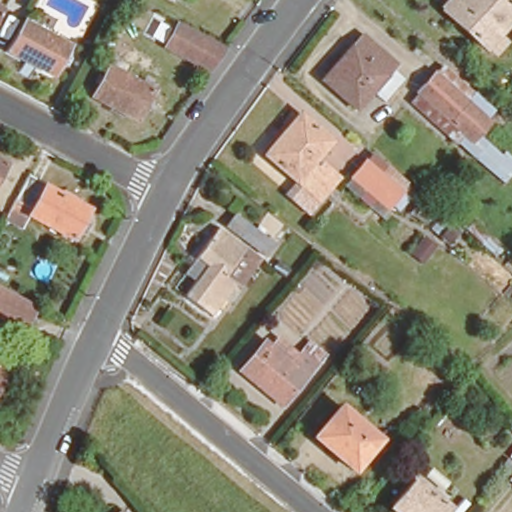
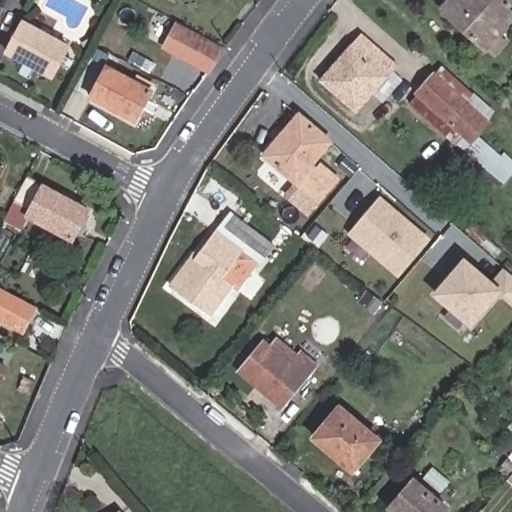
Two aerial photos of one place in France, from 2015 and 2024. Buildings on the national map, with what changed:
unchanged [(491,57),(483,50),(438,11),(448,0),(505,0),(508,3),(503,8),(512,16),(512,18),(496,35),(505,42),(491,57)]
unchanged [(0,11),(7,15),(0,28),(0,11)]
unchanged [(69,45),(52,76),(7,52),(25,21),(69,45)]
unchanged [(209,70),(165,48),(177,23),(225,49),(209,70)]
unchanged [(399,66),(357,112),(322,81),(363,35),(399,66)]
unchanged [(456,143),(410,101),(435,73),(442,65),(474,93),(497,113),(490,120),(492,122),(473,143),(463,135),(456,143)]
unchanged [(152,90),(136,121),(91,97),(107,66),(152,90)]
unchanged [(328,141),(308,165),(313,169),(317,164),(334,179),(315,201),(260,155),(296,113),(328,141)]
unchanged [(0,200),(0,199),(0,160),(16,169),(0,200)]
demolished [(398,191),(383,209),(372,200),(346,178),(361,161),(398,191)]
unchanged [(32,175),(94,208),(77,239),(31,215),(26,225),(11,217),(32,175)]
new [(347,235),(380,196),(430,239),(398,279),(347,235)]
unchanged [(276,244),(267,257),(227,225),(236,213),(276,244)]
new [(465,230),(471,223),(487,238),(501,251),(495,258),(480,245),(465,230)]
unchanged [(185,295),(200,276),(190,268),(198,259),(221,229),(245,247),(242,251),(255,260),(235,285),(211,315),(185,295)]
new [(512,274),(512,301),(501,293),(471,328),(432,296),(464,257),(492,280),(503,267),(512,274)]
unchanged [(22,330),(0,319),(0,289),(35,307),(22,330)]
unchanged [(287,362),(305,340),(322,355),(316,364),(314,362),(277,407),(235,372),(260,342),(287,362)]
demolished [(420,434),(397,412),(431,375),(445,387),(430,404),(439,412),(420,434)]
unchanged [(0,381),(0,379),(1,380),(0,381)]
unchanged [(381,439),(355,472),(313,437),(341,405),(381,439)]
unchanged [(512,430),(512,440),(508,436),(512,430)]
unchanged [(507,449),(512,443),(512,453),(507,449)]
unchanged [(448,512),(393,512),(389,509),(416,478),(451,509),(448,512)]

